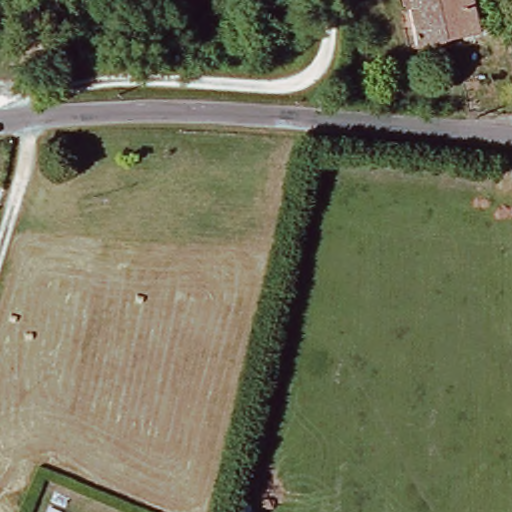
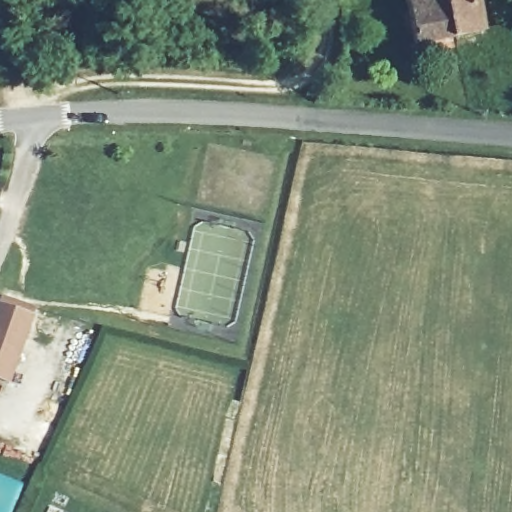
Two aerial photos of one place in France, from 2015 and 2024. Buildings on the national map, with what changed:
unchanged [(416,44),(407,0),(447,0),(455,37),(416,44)]
unchanged [(482,31),(455,37),(447,0),(476,0),(482,31)]
new [(39,308),(36,316),(12,384),(0,380),(0,302),(3,295),(39,308)]

